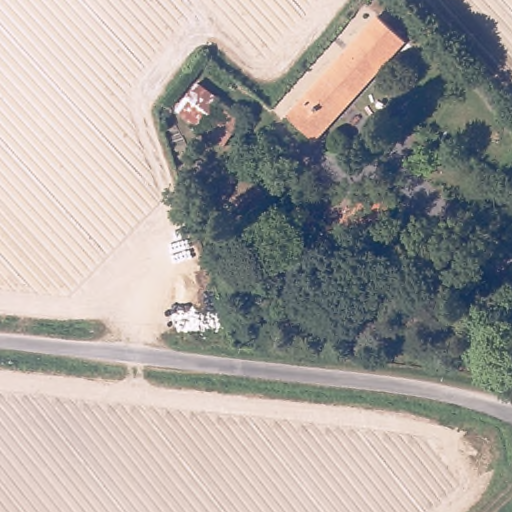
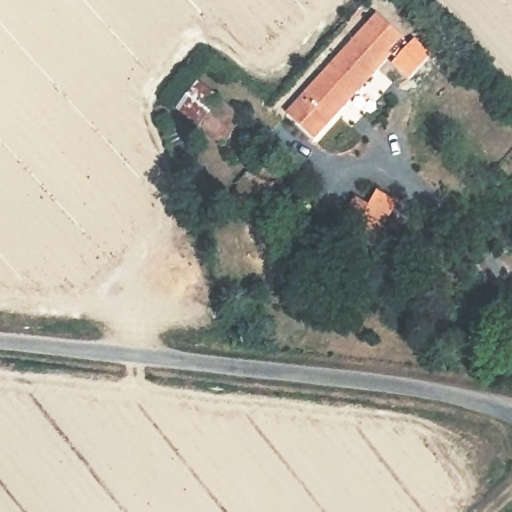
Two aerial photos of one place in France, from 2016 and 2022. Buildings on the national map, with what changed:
unchanged [(357,37),(378,13),(403,37),(393,49),(312,137),(286,115),(357,37)]
unchanged [(198,83),(243,120),(223,146),(177,109),(198,83)]
unchanged [(277,190),(258,219),(229,203),(246,172),(271,187),(277,190)]
unchanged [(336,225),(352,197),(366,205),(374,190),(395,201),(368,245),(350,234),(336,225)]

